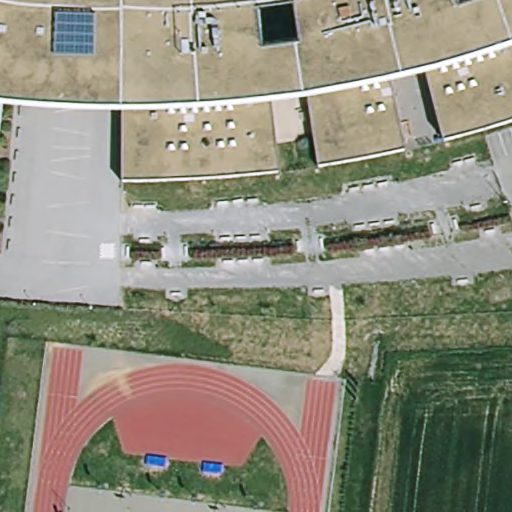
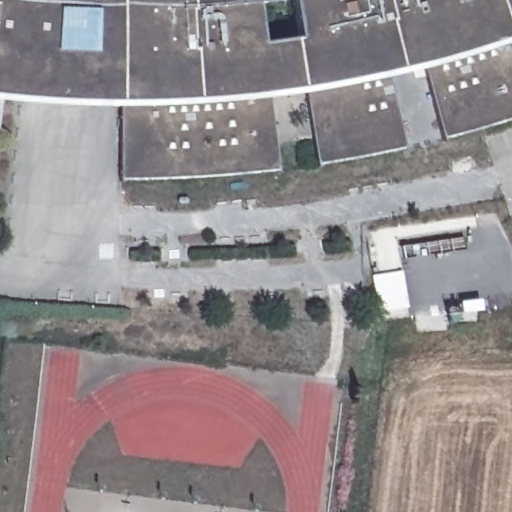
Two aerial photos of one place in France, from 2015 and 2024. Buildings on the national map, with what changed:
unchanged [(505,119),(444,138),(428,63),(392,72),(404,147),(319,163),(309,89),(270,94),(279,170),(222,176),(167,179),(121,179),(121,102),(55,101),(0,97),(0,0),(512,0),(512,117),(505,119)]

